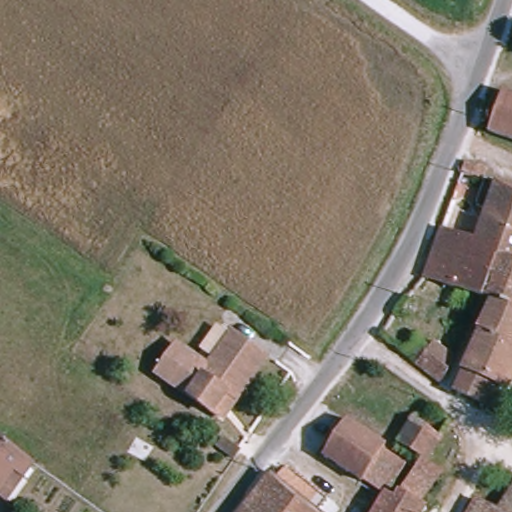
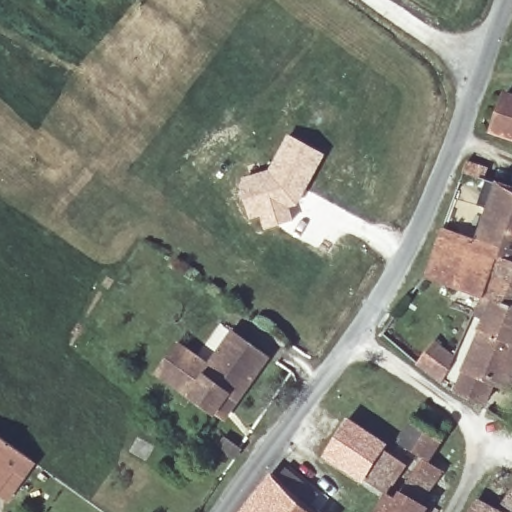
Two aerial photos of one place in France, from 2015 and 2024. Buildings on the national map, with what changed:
unchanged [(512,96),(512,136),(488,128),(501,92),(512,96)]
new [(266,168),(287,133),(325,154),(298,205),(290,208),(294,219),(263,229),(259,217),(249,220),(236,177),(266,168)]
unchanged [(474,256),(486,225),(478,221),(493,184),(512,191),(512,261),(500,257),(486,300),(466,292),(428,278),(440,243),(474,256)]
unchanged [(512,261),(512,347),(483,336),(490,321),(479,316),(486,300),(500,257),(512,261)]
unchanged [(217,351),(233,330),(272,359),(257,380),(217,351)]
unchanged [(478,349),(483,336),(512,347),(512,389),(510,393),(493,388),(486,401),(482,405),(457,393),(460,386),(478,349)]
unchanged [(431,339),(453,353),(440,380),(417,362),(431,339)]
unchanged [(214,415),(159,375),(180,346),(208,365),(217,351),(257,380),(243,400),(226,424),(214,415)]
unchanged [(398,443),(421,407),(449,425),(426,461),(414,453),(407,463),(391,453),(398,443)]
unchanged [(362,479),(359,483),(323,458),(347,424),(385,453),(404,467),(388,492),(386,496),(362,479)]
unchanged [(15,471),(0,491),(0,438),(37,465),(27,479),(15,471)]
unchanged [(438,475),(417,506),(425,511),(425,512),(377,512),(386,496),(396,502),(422,463),(438,475)]
unchanged [(303,499),(321,512),(241,512),(271,474),(303,499)]
unchanged [(499,512),(512,492),(512,512),(499,512)]
unchanged [(498,512),(468,512),(475,499),(498,512)]

